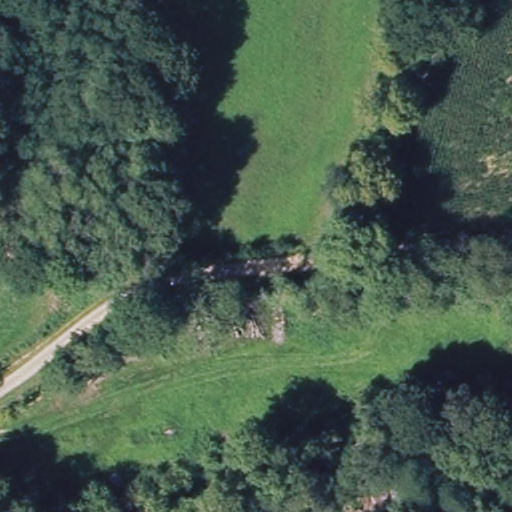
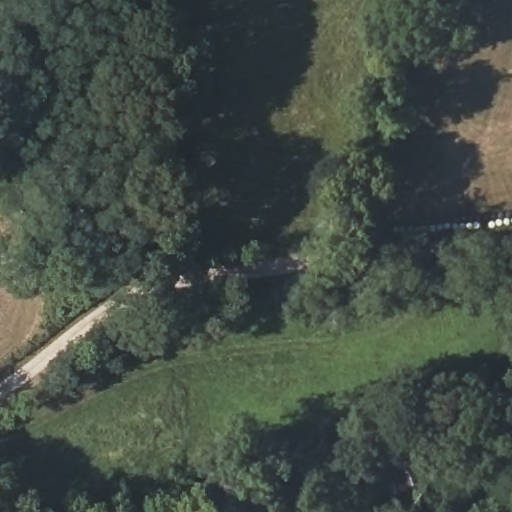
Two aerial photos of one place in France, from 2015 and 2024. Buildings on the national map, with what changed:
unchanged [(348,507),(342,486),(406,468),(420,512),(395,512),(388,496),(348,507)]

